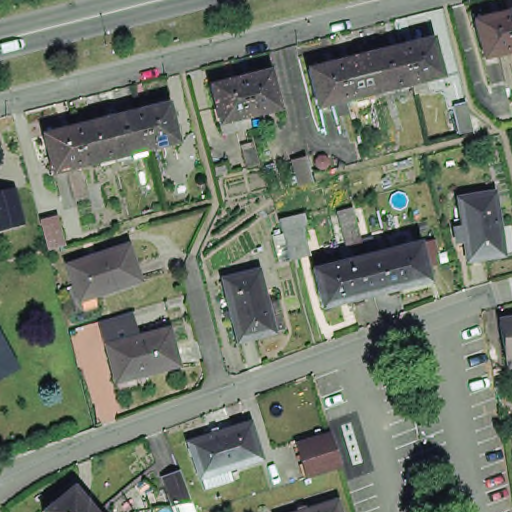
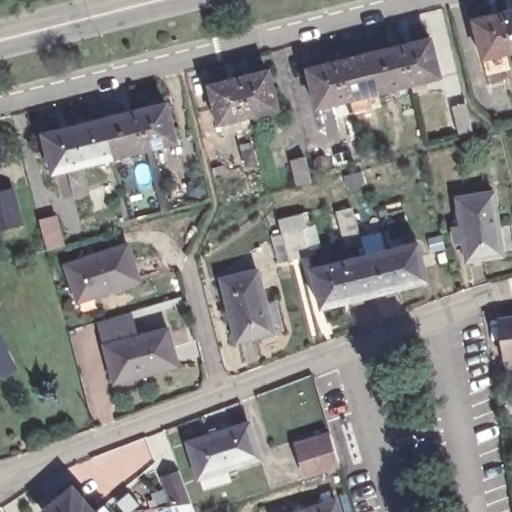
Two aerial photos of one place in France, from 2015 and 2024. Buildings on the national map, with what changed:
unchanged [(512,9),(512,49),(502,11),(512,9)]
unchanged [(473,20),(491,15),(491,14),(502,11),(512,49),(512,51),(482,57),(473,20)]
unchanged [(445,71),(416,79),(405,38),(417,35),(418,38),(436,34),(445,71)]
unchanged [(416,79),(383,87),(374,49),(393,44),(393,41),(405,38),(416,79)]
unchanged [(351,95),(322,102),(312,64),(328,59),(328,58),(341,55),(354,51),(355,54),(374,49),(383,87),(371,89),(375,102),(355,107),(351,95)]
unchanged [(246,116),(236,76),(250,73),(250,75),(267,70),(276,108),(246,116)]
unchanged [(217,123),(208,85),(225,81),(225,79),(236,76),(246,116),(217,123)]
unchanged [(141,104),(153,101),(154,103),(171,99),(180,137),(151,144),(141,104)]
unchanged [(458,133),(452,106),(465,103),(466,108),(471,132),(458,133)]
unchanged [(151,144),(120,152),(110,114),(130,109),(130,107),(141,104),(151,144)]
unchanged [(88,117),(90,119),(110,114),(120,152),(87,160),(77,120),(88,117)]
unchanged [(57,167),(48,129),(65,125),(63,123),(77,120),(87,160),(57,167)]
unchanged [(13,186),(23,222),(0,228),(0,189),(13,186)]
unchanged [(461,235),(453,236),(451,226),(460,224),(455,193),(492,187),(497,216),(509,214),(512,231),(512,248),(503,249),(465,256),(461,235)]
unchanged [(350,209),(360,242),(347,245),(338,212),(350,209)]
unchanged [(57,218),(65,245),(47,249),(40,222),(57,218)]
unchanged [(271,239),(281,236),(299,231),(306,257),(288,262),(279,265),(271,239)]
unchanged [(78,298),(66,262),(128,242),(140,278),(78,298)]
unchanged [(340,261),(364,255),(386,250),(415,242),(425,278),(397,286),(375,291),(350,298),(320,306),(310,269),(340,261)]
unchanged [(272,330),(238,339),(221,277),(256,268),(265,302),(275,299),(283,327),(272,330)]
unchanged [(501,316),(512,315),(512,361),(508,362),(506,353),(501,316)]
unchanged [(116,378),(105,341),(167,323),(178,360),(135,372),(138,381),(118,387),(116,378)]
unchanged [(12,362),(0,369),(0,340),(12,362)]
unchanged [(204,487),(200,478),(188,442),(248,423),(260,458),(226,469),(230,479),(204,487)]
unchanged [(328,430),(338,462),(306,473),(295,441),(328,430)]
unchanged [(191,505),(182,506),(173,508),(162,478),(179,472),(191,505)]
unchanged [(73,485),(94,509),(97,506),(102,512),(45,512),(43,510),(73,485)]
unchanged [(340,512),(299,512),(336,500),(340,512)]

